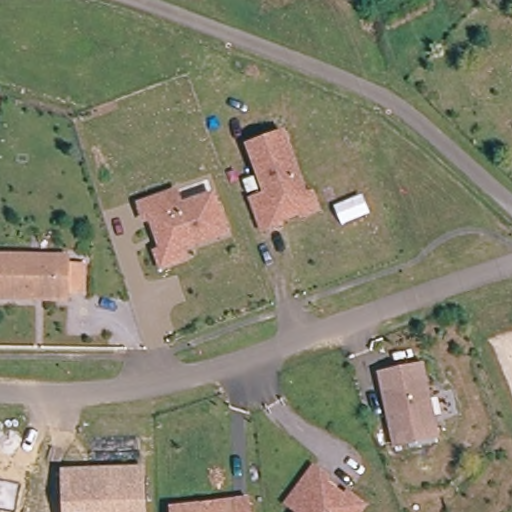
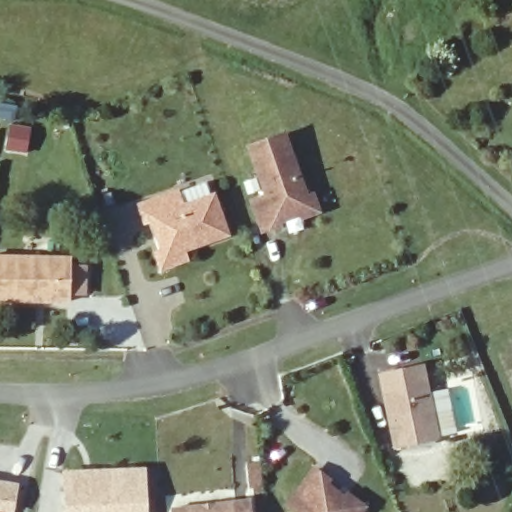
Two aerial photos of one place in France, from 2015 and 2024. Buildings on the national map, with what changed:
unchanged [(315,213),(297,219),(295,212),(273,221),(276,227),(259,234),(247,203),(262,197),(245,150),(279,137),(301,196),(309,193),(315,213)]
unchanged [(164,267),(161,252),(164,251),(152,219),(146,220),(142,205),(178,192),(183,205),(214,195),(228,231),(186,249),(189,258),(164,267)]
unchanged [(77,272),(93,272),(93,300),(77,300),(77,307),(0,308),(0,264),(78,263),(77,272)]
unchanged [(421,366),(437,439),(395,448),(378,376),(421,366)]
unchanged [(67,471),(144,467),(146,512),(69,512),(67,471)]
unchanged [(290,503),(316,467),(329,478),(325,484),(346,499),(350,492),(366,504),(360,512),(302,512),(290,503)]
new [(21,484),(16,512),(0,512),(0,480),(21,484)]
unchanged [(252,500),(253,512),(173,512),(172,508),(252,500)]

